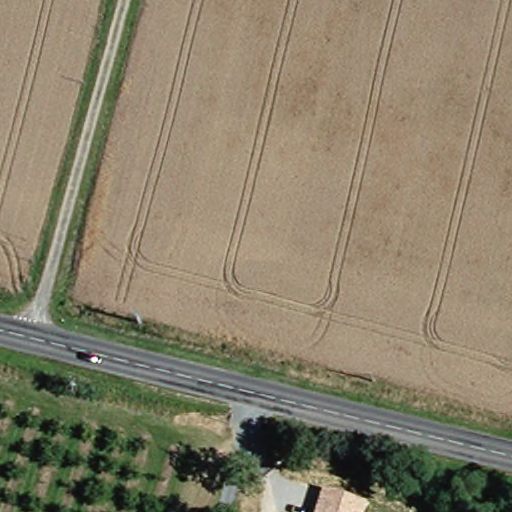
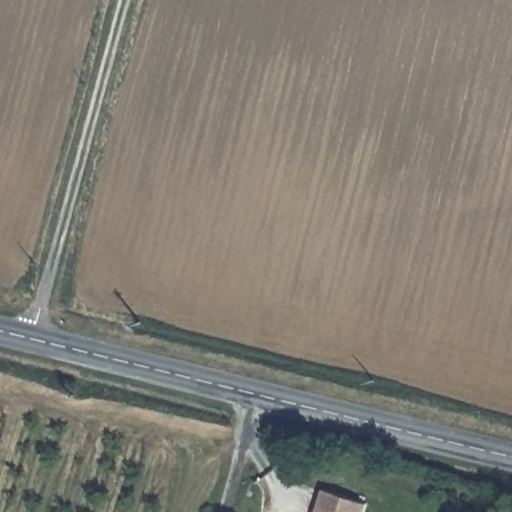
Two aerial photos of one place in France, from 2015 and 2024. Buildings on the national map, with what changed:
unchanged [(321,494),(321,491),(364,504),(362,512),(315,512),(321,494)]

